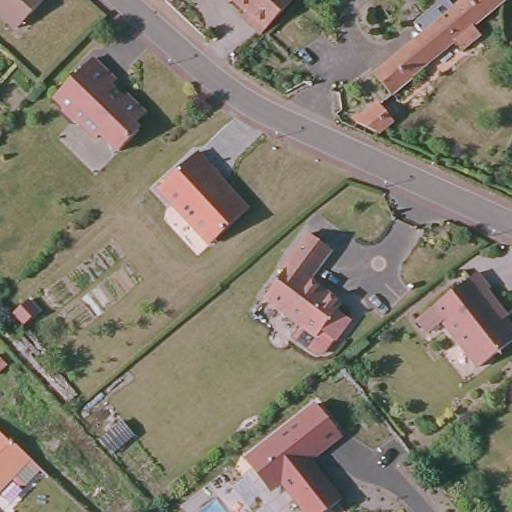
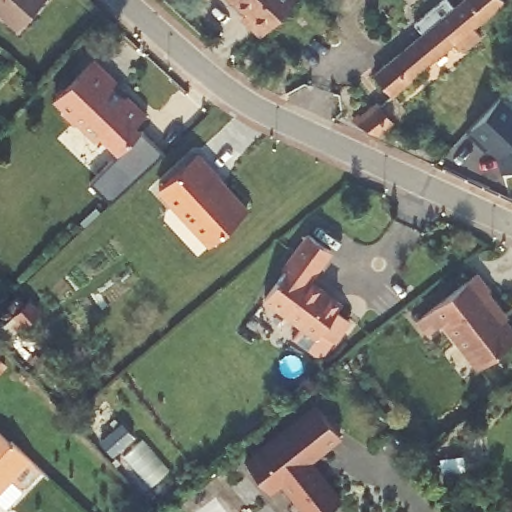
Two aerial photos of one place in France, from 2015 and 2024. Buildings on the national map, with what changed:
unchanged [(0,0),(41,0),(16,26),(0,11),(0,0)]
unchanged [(242,20),(247,14),(232,0),(294,0),(261,36),(242,20)]
unchanged [(424,36),(414,25),(446,1),(455,12),(467,4),(462,0),(503,0),(505,2),(497,9),(485,19),(476,26),(482,35),(464,50),(455,42),(444,51),(409,78),(411,81),(407,85),(394,95),(391,96),(373,75),(424,36)]
unchanged [(108,85),(103,90),(116,101),(121,102),(138,117),(128,127),(133,132),(113,154),(95,137),(89,141),(73,125),(65,125),(57,117),(56,110),(47,101),(85,63),(108,85)]
new [(502,170),(497,156),(487,148),(484,150),(468,133),(503,97),(512,107),(512,167),(502,170)]
unchanged [(361,119),(361,115),(358,112),(363,109),(368,112),(379,102),(394,119),(392,121),(383,130),(361,119)]
unchanged [(216,174),(210,180),(219,190),(223,186),(244,210),(208,242),(179,212),(181,210),(158,185),(196,151),(216,174)]
unchanged [(323,348),(318,348),(296,332),(304,320),(268,292),(293,260),(289,258),(312,227),(334,245),(312,273),(319,280),(318,281),(328,288),(329,286),(344,298),(339,304),(353,313),(336,335),(328,346),(323,348)]
unchanged [(481,295),(475,299),(508,342),(471,371),(434,324),(419,336),(409,322),(468,277),(481,295)]
unchanged [(343,439),(313,462),(341,500),(326,512),(301,512),(283,485),(271,493),(244,457),(314,403),(343,439)]
unchanged [(20,481),(13,481),(4,472),(0,476),(0,435),(4,439),(5,437),(23,453),(30,460),(36,465),(20,481)]

